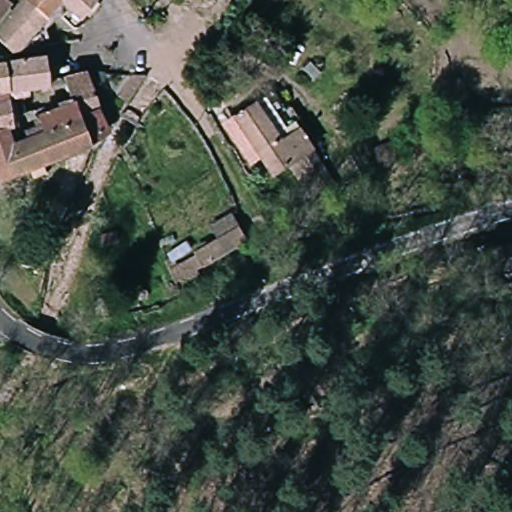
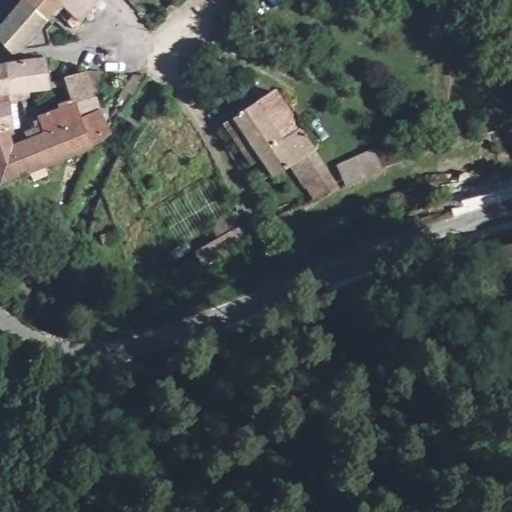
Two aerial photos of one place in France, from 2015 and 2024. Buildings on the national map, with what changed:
unchanged [(0,17),(0,0),(6,0),(10,4),(0,17)]
unchanged [(40,22),(21,48),(10,51),(0,40),(0,25),(17,4),(20,0),(24,0),(45,16),(40,22)]
unchanged [(24,0),(57,0),(45,16),(24,0)]
unchanged [(69,5),(63,0),(93,0),(79,14),(69,5)]
unchanged [(5,118),(2,107),(6,105),(0,72),(39,64),(46,91),(18,102),(20,111),(5,118)]
unchanged [(71,106),(60,79),(81,72),(102,71),(93,101),(103,133),(85,144),(88,149),(54,167),(42,138),(35,123),(38,122),(57,113),(71,106)]
unchanged [(2,107),(0,108),(0,72),(6,105),(2,107)]
unchanged [(144,72),(141,78),(128,98),(118,94),(131,72),(144,72)]
unchanged [(221,136),(216,129),(229,121),(253,105),(269,94),(286,120),(336,193),(308,194),(289,168),(269,179),(256,160),(243,169),(221,136)]
unchanged [(5,118),(20,111),(24,120),(5,133),(1,135),(0,136),(0,108),(2,107),(5,118)]
unchanged [(42,138),(54,167),(45,172),(0,195),(0,136),(1,135),(8,150),(42,138)]
unchanged [(198,262),(193,246),(223,236),(221,225),(238,219),(241,230),(246,246),(198,262)]
unchanged [(99,240),(114,234),(118,244),(103,250),(99,240)]
unchanged [(512,242),(512,270),(508,242),(512,242)]

